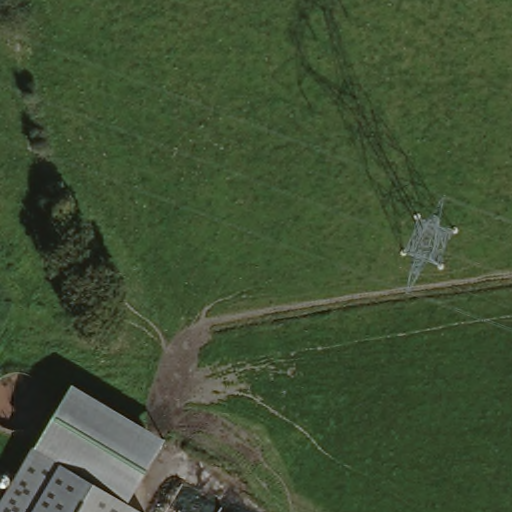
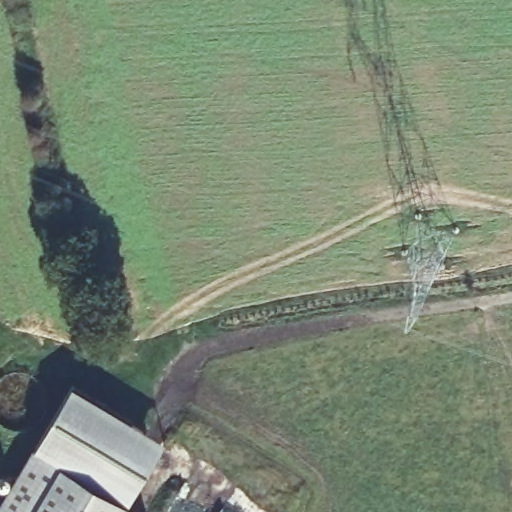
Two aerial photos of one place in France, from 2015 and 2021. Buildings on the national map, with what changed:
unchanged [(166,437),(132,499),(40,444),(74,382),(166,437)]
unchanged [(0,512),(0,511),(40,444),(150,509),(148,512),(0,512)]

